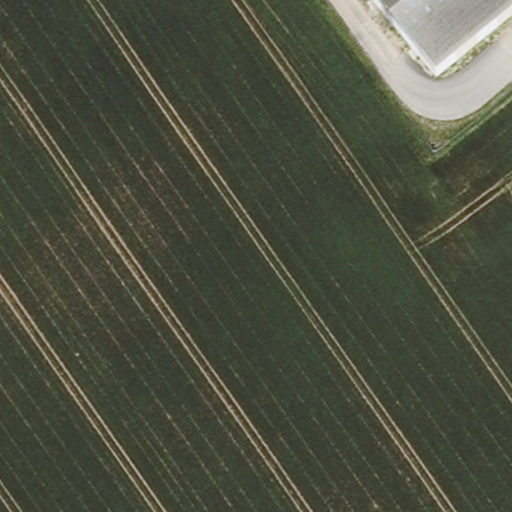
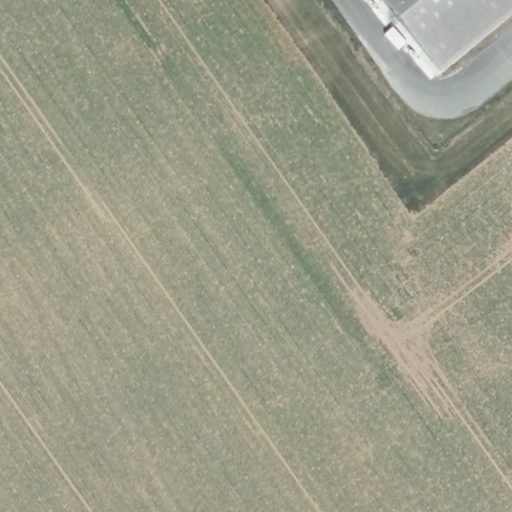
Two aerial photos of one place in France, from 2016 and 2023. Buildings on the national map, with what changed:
unchanged [(364,0),(512,0),(512,15),(431,81),(364,0)]

